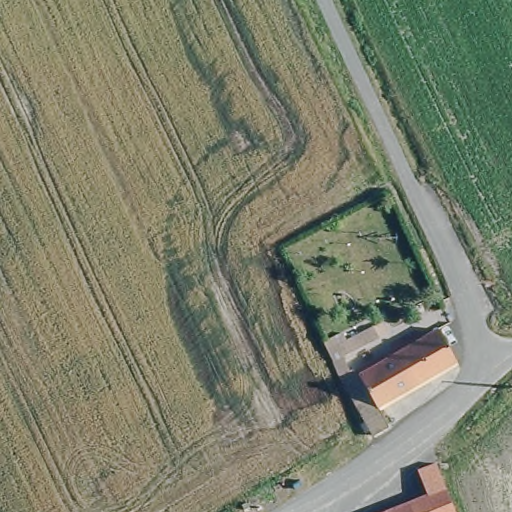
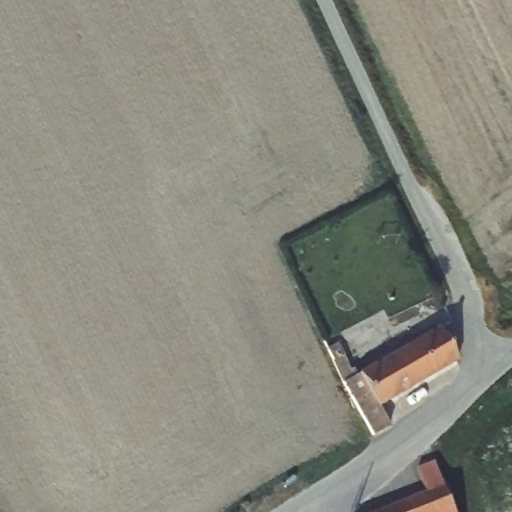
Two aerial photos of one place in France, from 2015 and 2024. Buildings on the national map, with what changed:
unchanged [(342,333),(346,339),(382,320),(387,332),(332,360),(325,343),(342,333)]
unchanged [(360,371),(437,324),(456,358),(377,404),(360,371)]
unchanged [(343,380),(360,371),(377,404),(383,415),(389,425),(373,434),(366,421),(343,380)]
unchanged [(431,491),(424,466),(438,460),(441,467),(445,480),(455,510),(456,512),(377,512),(431,491)]

